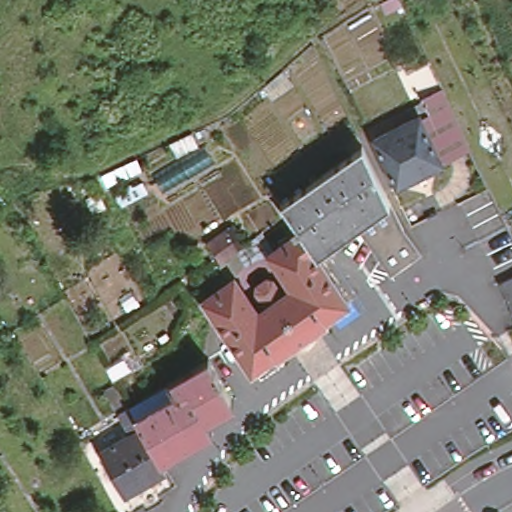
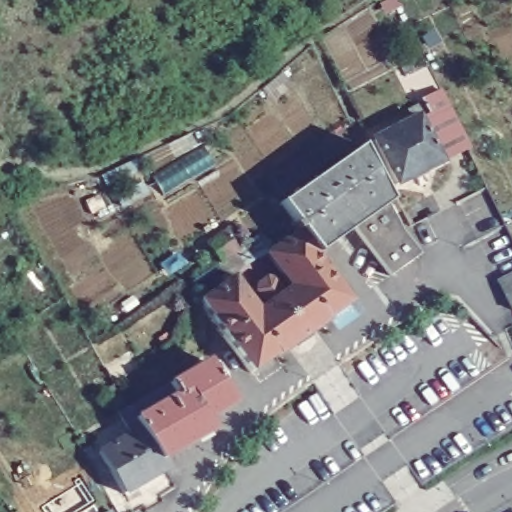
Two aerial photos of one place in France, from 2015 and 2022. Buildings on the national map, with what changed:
unchanged [(374,137),(413,117),(408,107),(422,100),(421,97),(441,88),(468,146),(441,160),(396,182),(374,137)]
unchanged [(313,245),(314,247),(313,249),(299,229),(297,227),(294,230),(289,225),(294,222),(279,200),(281,200),(281,201),(361,146),(359,143),(361,142),(386,194),(349,219),(313,245)]
unchanged [(349,219),(386,194),(403,230),(420,252),(389,273),(384,267),(349,219)]
unchanged [(258,283),(266,277),(272,278),(281,272),(266,252),(299,229),(313,249),(349,300),(325,317),(326,318),(276,353),(276,352),(251,370),(201,298),(233,275),(253,304),(263,298),(256,289),(258,283)]
unchanged [(218,265),(205,247),(226,231),(239,250),(218,265)]
unchanged [(503,291),(494,274),(512,266),(512,302),(509,303),(506,296),(503,291)]
unchanged [(112,404),(107,395),(116,390),(118,393),(121,398),(122,400),(203,353),(228,396),(200,412),(206,422),(153,453),(158,462),(143,470),(125,481),(117,485),(93,444),(124,425),(112,404)]

